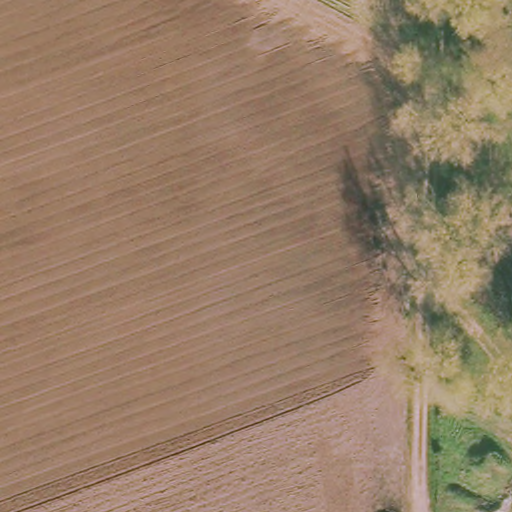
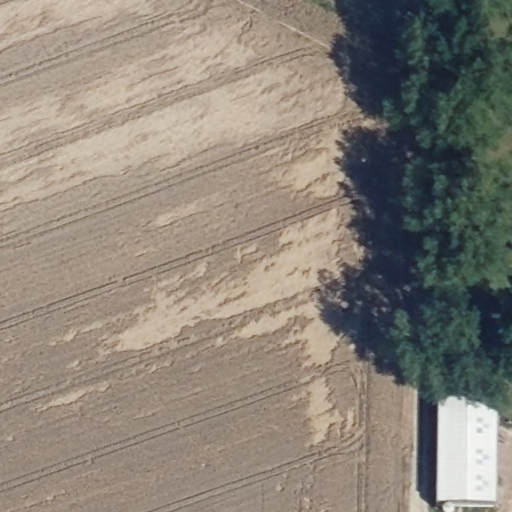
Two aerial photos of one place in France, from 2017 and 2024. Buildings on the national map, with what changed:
new [(437,400),(497,400),(496,506),(437,506),(437,400)]

